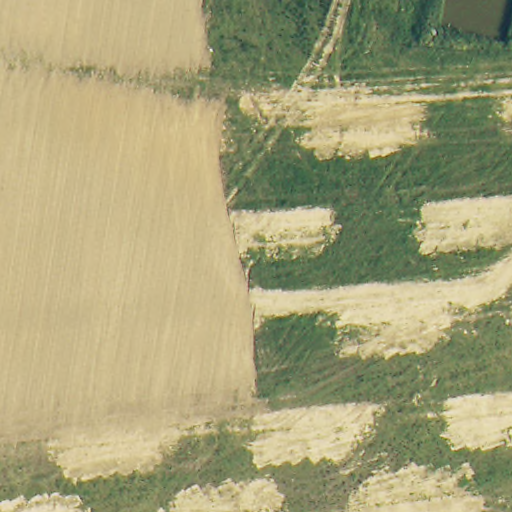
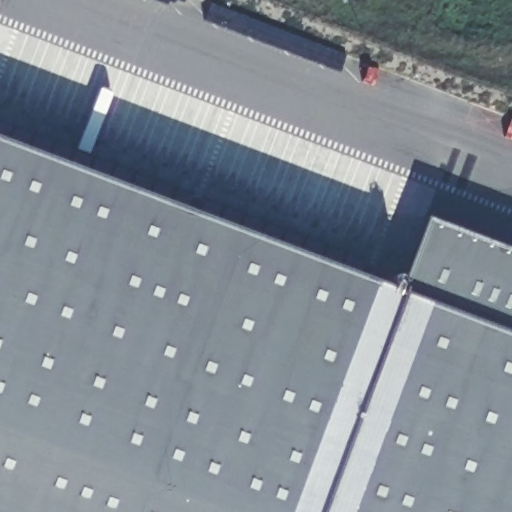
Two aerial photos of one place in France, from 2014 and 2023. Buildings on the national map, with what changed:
new [(429,217),(512,249),(512,512),(0,512),(0,138),(402,290),(429,217)]

